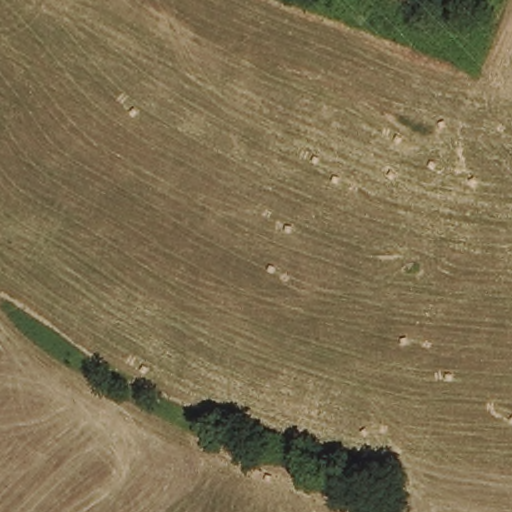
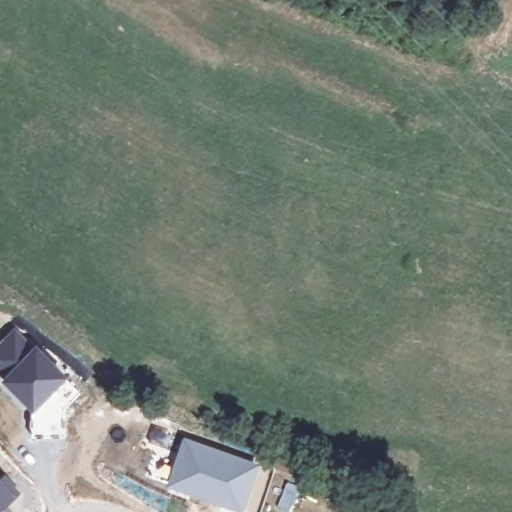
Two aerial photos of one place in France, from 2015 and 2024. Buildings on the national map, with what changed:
new [(16,326),(35,343),(0,377),(0,376),(0,341),(16,326)]
new [(35,343),(67,376),(30,411),(0,377),(35,343)]
new [(260,463),(244,512),(243,512),(165,484),(183,436),(260,463)]
new [(1,479),(5,477),(19,492),(0,507),(0,478),(1,479)]

